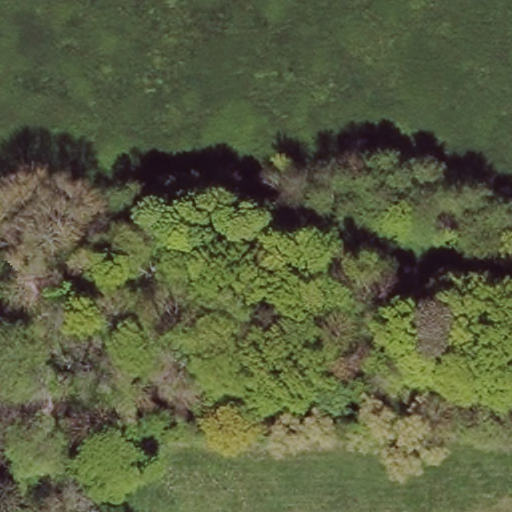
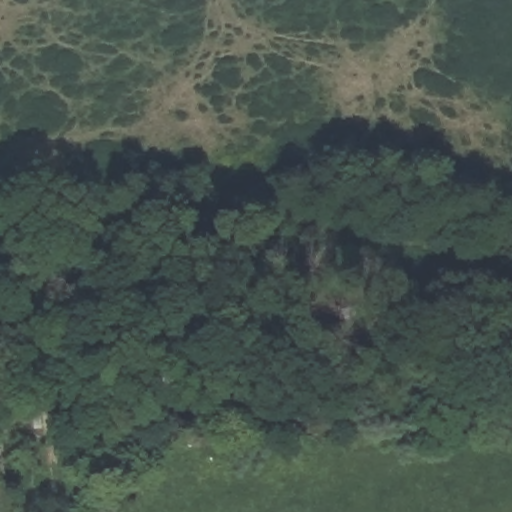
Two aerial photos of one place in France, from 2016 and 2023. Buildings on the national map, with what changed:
unchanged [(52,298),(20,301),(17,276),(50,273),(52,298)]
unchanged [(175,378),(147,379),(147,353),(175,352),(175,378)]

